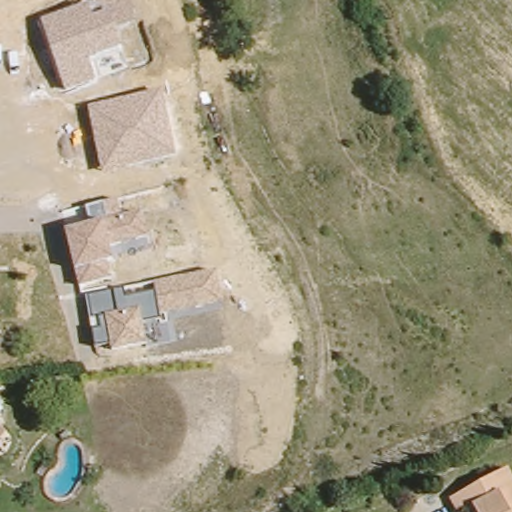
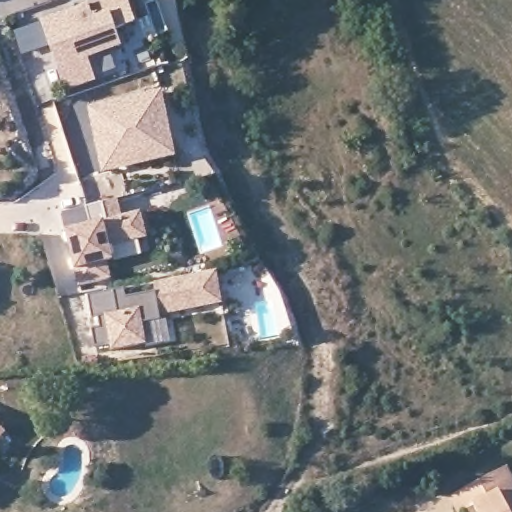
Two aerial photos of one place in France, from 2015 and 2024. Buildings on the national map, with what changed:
unchanged [(117,33),(120,51),(89,61),(95,83),(64,91),(42,21),(105,0),(131,0),(137,26),(117,33)]
unchanged [(177,158),(102,174),(89,107),(164,91),(177,158)]
unchanged [(148,238),(110,249),(113,262),(109,263),(113,279),(80,286),(65,230),(89,224),(86,208),(117,199),(122,216),(142,211),(148,238)]
unchanged [(225,304),(142,324),(145,343),(110,349),(108,343),(93,346),(85,296),(124,290),(126,298),(155,292),(154,284),(218,271),(225,304)]
unchanged [(12,430),(0,444),(0,420),(12,430)]
unchanged [(451,502),(507,472),(512,480),(512,512),(457,512),(451,502)]

